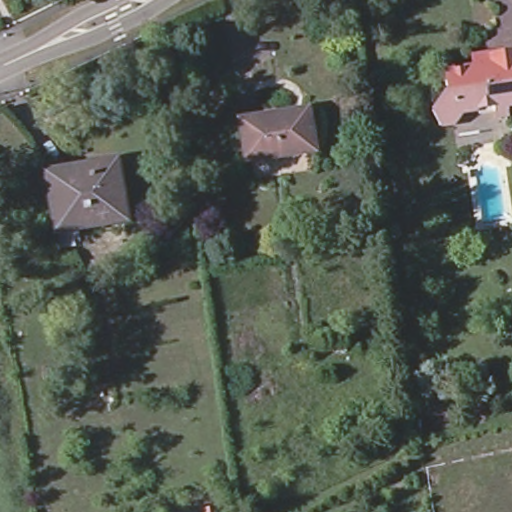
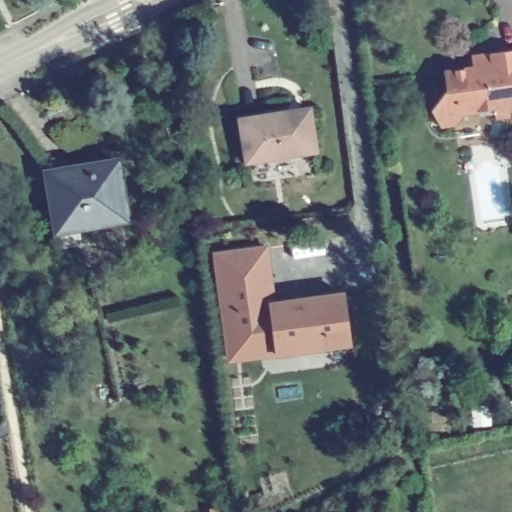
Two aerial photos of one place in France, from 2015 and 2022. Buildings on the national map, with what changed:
unchanged [(507,103),(507,115),(497,116),(495,105),(463,111),(452,124),(436,126),(429,110),(442,89),(439,72),(471,67),(469,55),(484,53),(512,48),(512,103),(507,103)]
unchanged [(311,152),(246,157),(243,115),(309,110),(311,152)]
unchanged [(59,239),(57,225),(49,168),(117,155),(126,211),(72,222),(74,236),(59,239)]
new [(263,249),(272,307),(292,304),(292,308),(302,307),(301,300),(316,298),(316,301),(339,297),(341,314),(344,314),(349,345),(276,356),(276,355),(272,328),(224,335),(212,257),(263,249)]
new [(272,328),(276,355),(228,362),(224,335),(272,328)]

